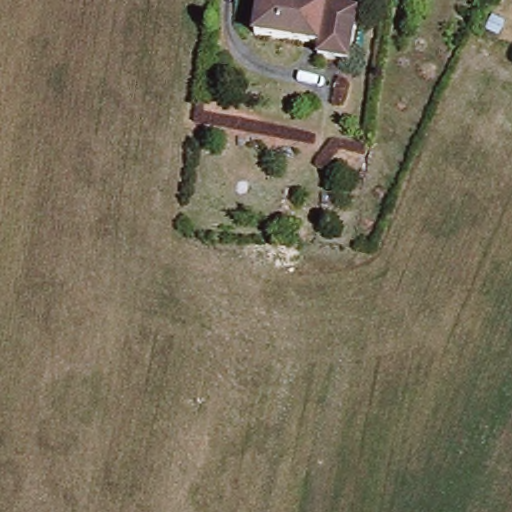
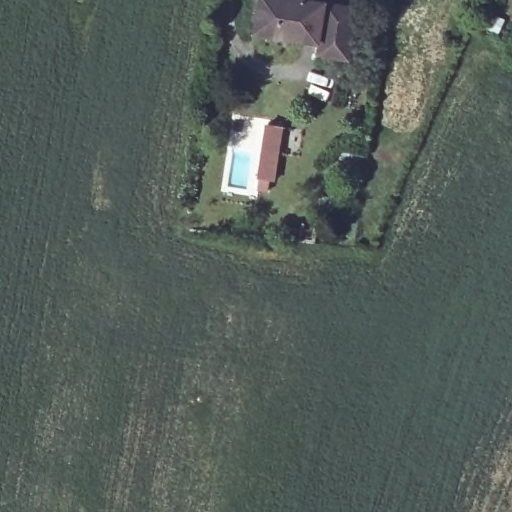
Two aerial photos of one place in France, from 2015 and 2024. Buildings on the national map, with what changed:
unchanged [(320,54),(322,42),(259,31),(264,0),(362,0),(360,12),(355,58),(320,54)]
new [(266,125),(280,127),(271,182),(267,181),(266,191),(255,189),(266,125)]

